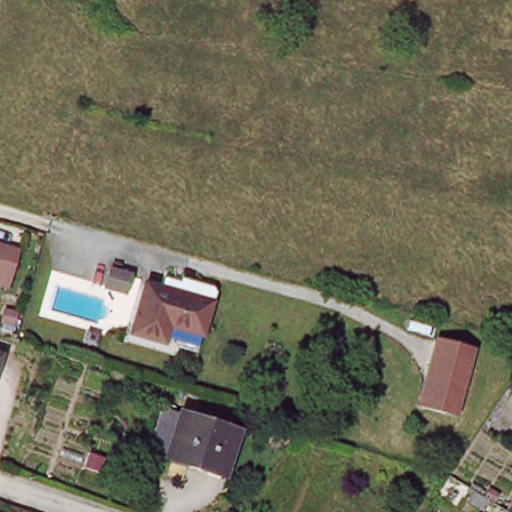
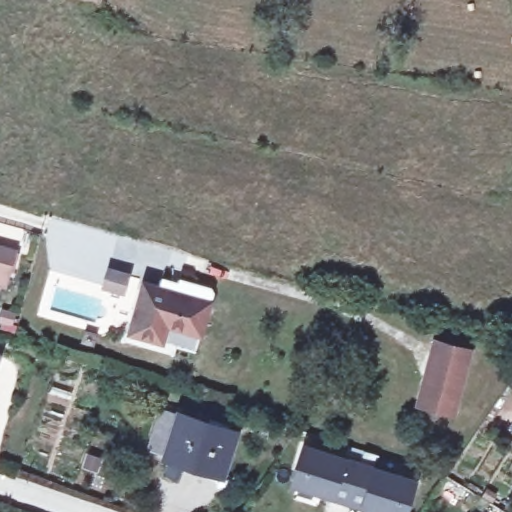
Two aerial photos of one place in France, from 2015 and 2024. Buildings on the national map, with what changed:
unchanged [(7,254),(0,277),(0,252),(7,254)]
unchanged [(128,279),(123,294),(103,289),(108,273),(128,279)]
unchanged [(162,282),(180,287),(177,294),(210,304),(202,332),(166,322),(160,344),(129,336),(143,285),(160,290),(162,282)]
unchanged [(463,354),(446,417),(412,408),(430,345),(463,354)]
unchanged [(237,437),(223,476),(150,454),(165,414),(237,437)]
new [(302,455),(412,489),(407,509),(401,507),(399,512),(361,512),(362,509),(332,501),(331,503),(296,492),(301,476),(296,474),(302,455)]

